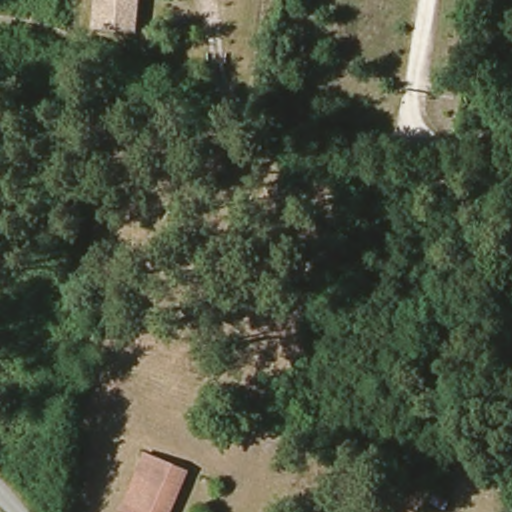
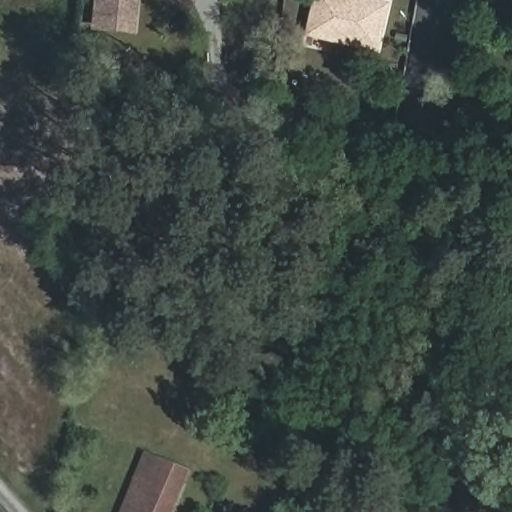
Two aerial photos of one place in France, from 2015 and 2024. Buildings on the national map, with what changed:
unchanged [(97,20),(98,0),(138,0),(137,22),(97,20)]
new [(317,0),(373,0),(387,3),(377,48),(340,40),(333,38),(309,32),(317,0)]
unchanged [(180,348),(152,382),(124,355),(151,323),(180,348)]
unchanged [(188,472),(171,512),(122,512),(145,457),(188,472)]

